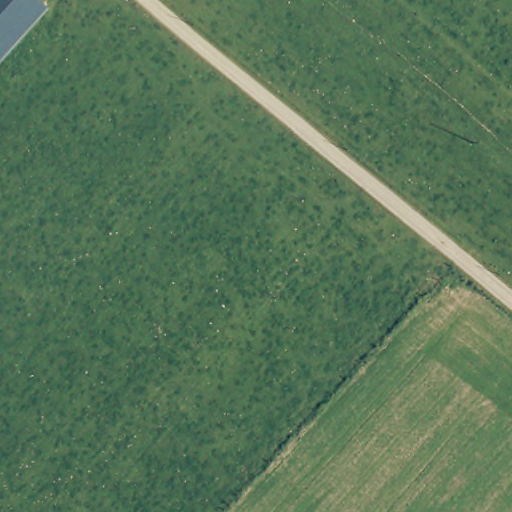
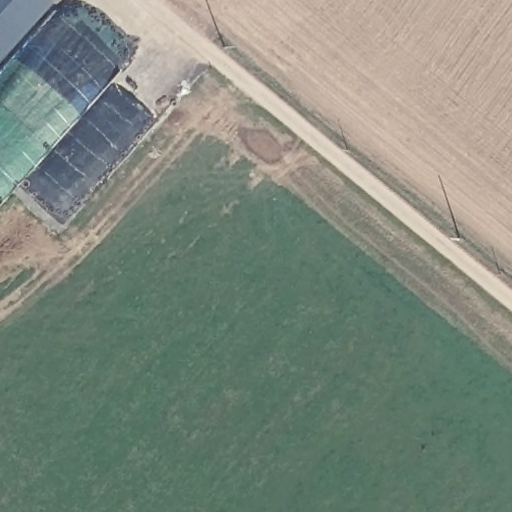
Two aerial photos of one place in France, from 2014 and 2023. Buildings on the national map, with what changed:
unchanged [(0,0),(41,0),(45,4),(0,53),(0,0)]

